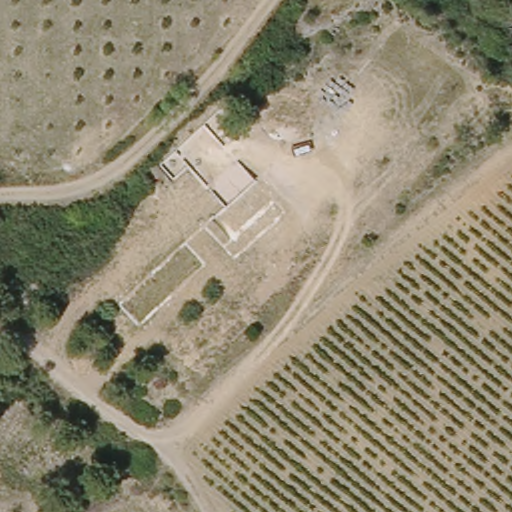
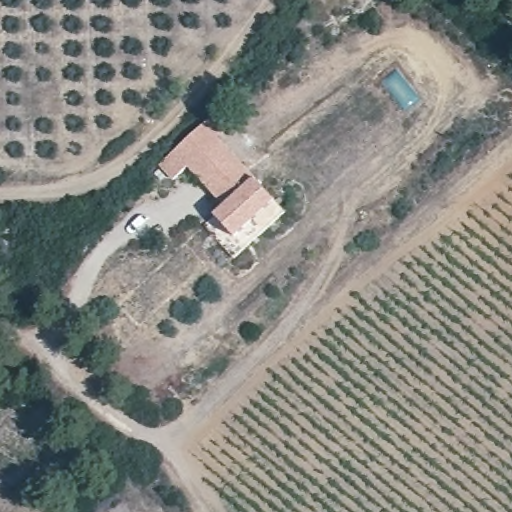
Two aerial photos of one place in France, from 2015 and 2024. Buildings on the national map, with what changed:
new [(223,107),(237,124),(219,139),(284,214),(235,258),(206,226),(225,206),(189,166),(173,180),(159,163),(223,107)]

